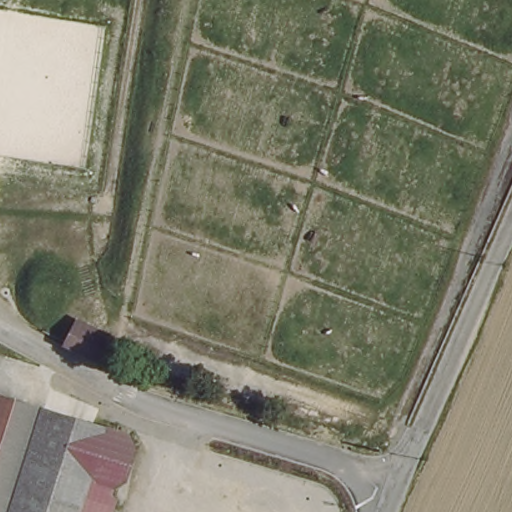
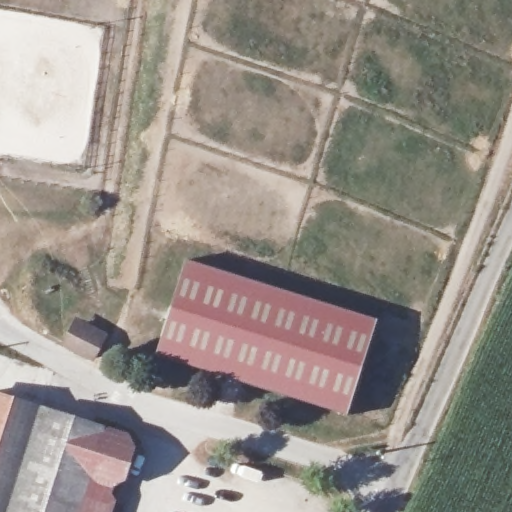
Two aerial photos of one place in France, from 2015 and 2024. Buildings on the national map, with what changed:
new [(183,260),(378,321),(349,415),(156,357),(183,260)]
unchanged [(104,341),(96,360),(64,347),(73,327),(104,341)]
unchanged [(12,512),(0,512),(0,399),(39,410),(12,512)]
unchanged [(110,429),(83,512),(12,512),(39,410),(110,429)]
unchanged [(123,432),(134,446),(119,452),(115,467),(125,475),(123,479),(112,482),(108,502),(116,505),(114,512),(83,512),(110,429),(123,432)]

